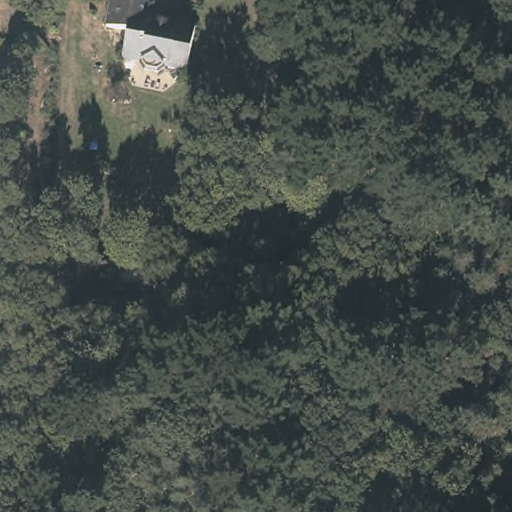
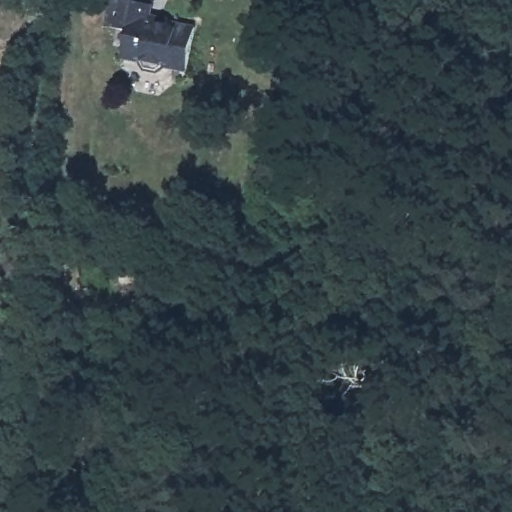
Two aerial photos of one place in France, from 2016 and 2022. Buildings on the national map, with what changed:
unchanged [(126,42),(127,26),(110,24),(113,0),(149,0),(152,0),(151,15),(155,15),(162,11),(173,14),(173,17),(196,20),(190,65),(172,62),(172,60),(169,59),(161,67),(147,65),(145,64),(140,57),(124,55),(126,42)]

